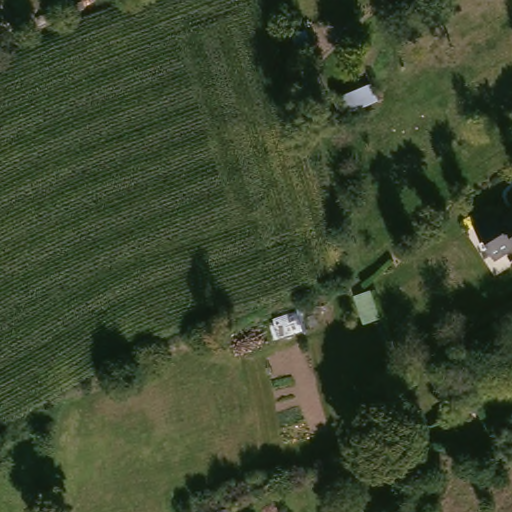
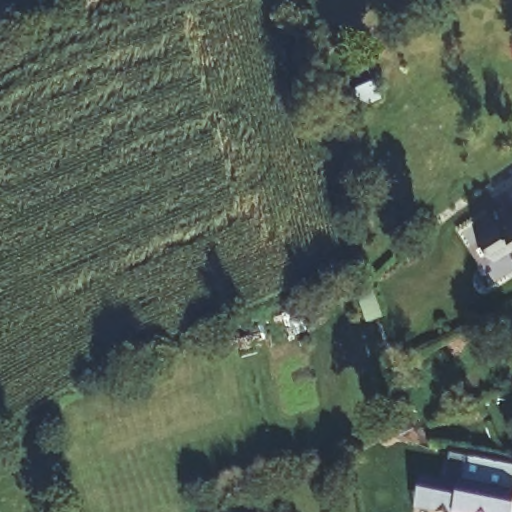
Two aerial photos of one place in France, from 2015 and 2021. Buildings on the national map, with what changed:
unchanged [(344,120),(335,101),(372,83),(382,103),(344,120)]
unchanged [(507,264),(478,219),(501,204),(506,210),(512,207),(512,261),(507,264)]
new [(423,479),(441,483),(446,484),(452,456),(468,460),(463,488),(512,499),(512,512),(421,512),(416,511),(423,479)]

